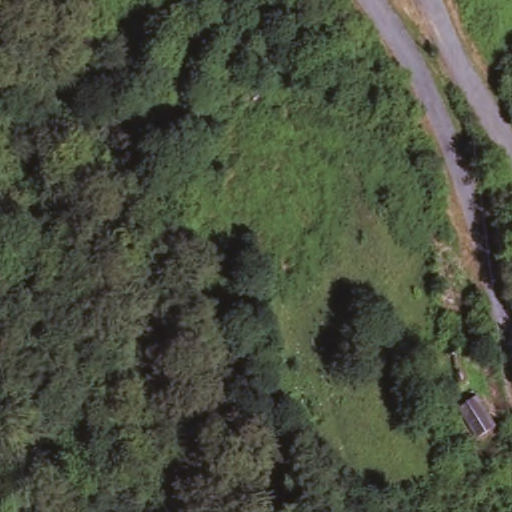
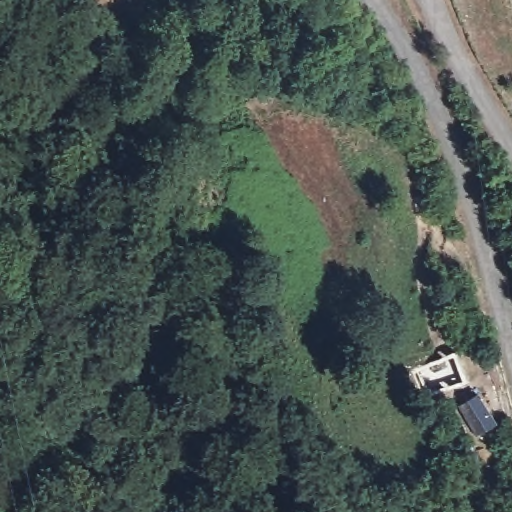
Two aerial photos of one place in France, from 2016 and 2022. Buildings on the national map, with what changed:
unchanged [(461,346),(466,363),(470,380),(444,387),(434,353),(461,346)]
unchanged [(474,392),(486,409),(498,425),(474,441),(451,407),(474,392)]

